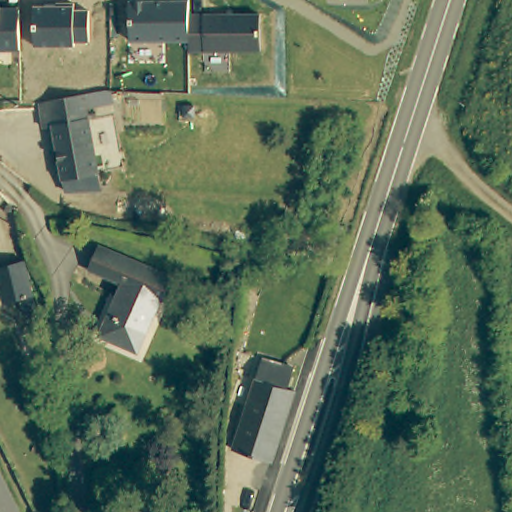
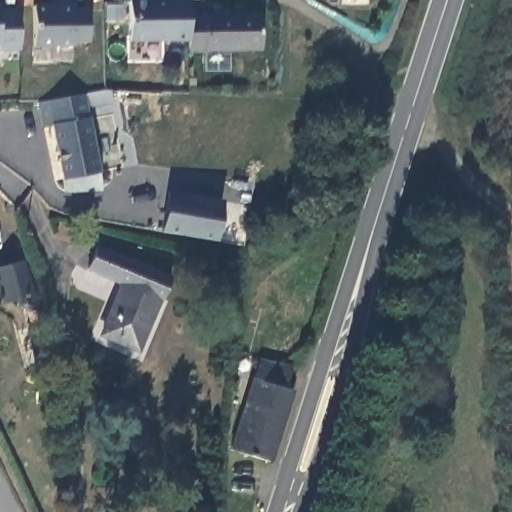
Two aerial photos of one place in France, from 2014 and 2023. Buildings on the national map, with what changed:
unchanged [(189,51),(189,42),(129,41),(130,1),(187,1),(187,13),(259,13),(260,51),(189,51)]
unchanged [(74,42),(74,46),(33,48),(32,6),(74,5),(74,10),(88,10),(89,42),(74,42)]
unchanged [(15,50),(0,50),(0,11),(14,10),(15,39),(15,50)]
unchanged [(78,97),(85,121),(51,132),(50,133),(42,135),(33,112),(78,97)]
unchanged [(85,121),(105,192),(69,197),(51,132),(85,121)]
new [(222,202),(215,241),(160,230),(168,191),(222,202)]
unchanged [(169,275),(160,298),(124,282),(121,288),(86,272),(98,245),(169,275)]
unchanged [(30,294),(4,298),(3,289),(0,265),(0,252),(25,250),(30,294)]
unchanged [(160,298),(134,351),(98,335),(121,288),(124,282),(160,298)]
unchanged [(291,369),(284,390),(299,395),(275,469),(231,456),(260,359),(291,369)]

